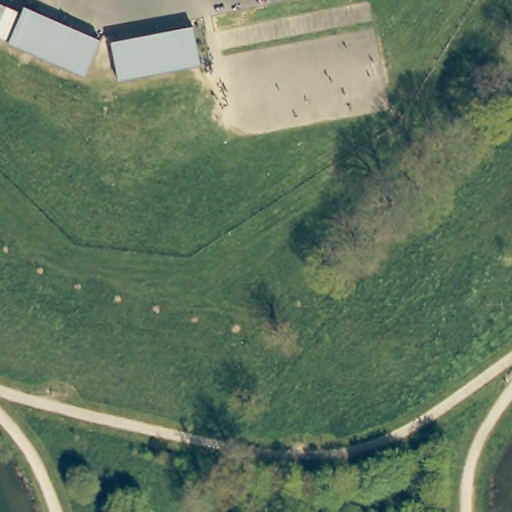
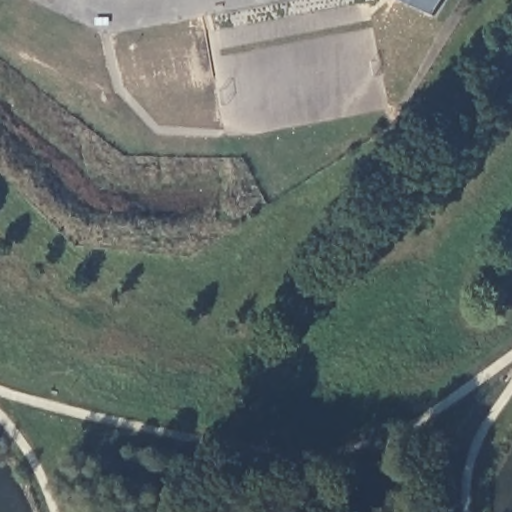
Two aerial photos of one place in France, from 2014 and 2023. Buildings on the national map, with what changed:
new [(435,16),(400,0),(445,0),(435,16)]
demolished [(9,42),(24,7),(98,40),(83,75),(9,42)]
demolished [(199,65),(117,80),(111,41),(190,25),(199,65)]

